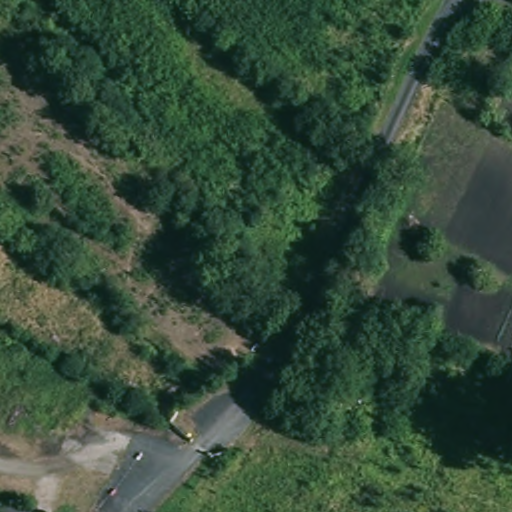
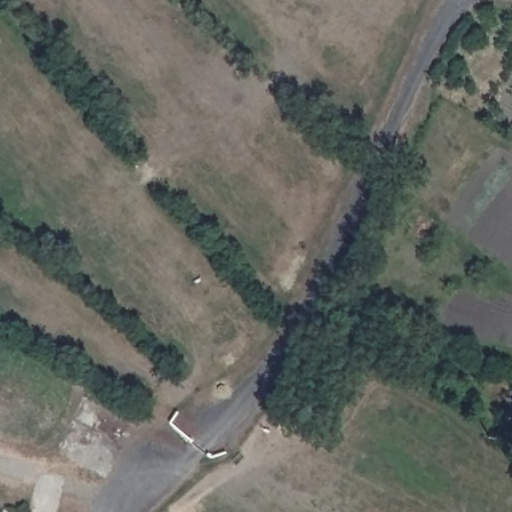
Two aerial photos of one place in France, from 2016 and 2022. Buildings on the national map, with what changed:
unchanged [(10,512),(0,512),(0,510),(10,512)]

